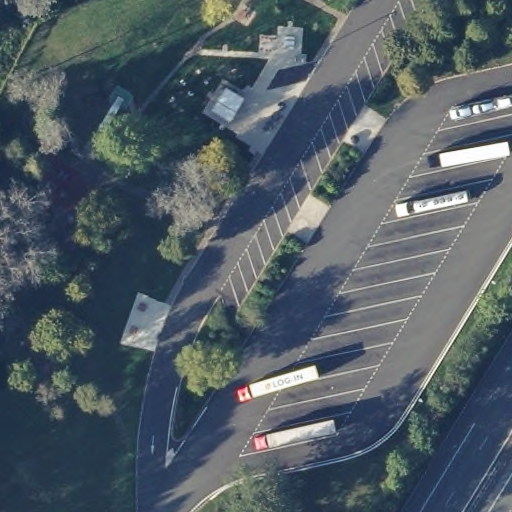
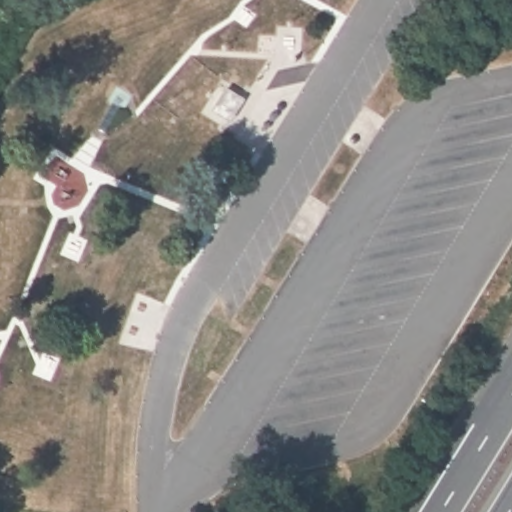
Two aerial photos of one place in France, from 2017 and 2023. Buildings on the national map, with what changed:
unchanged [(240,115),(221,141),(197,124),(214,100),(240,115)]

